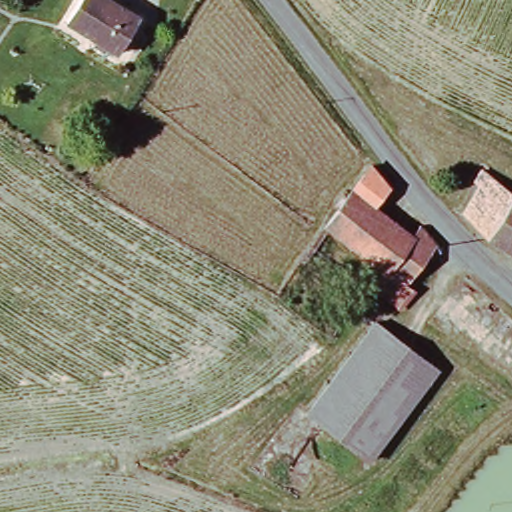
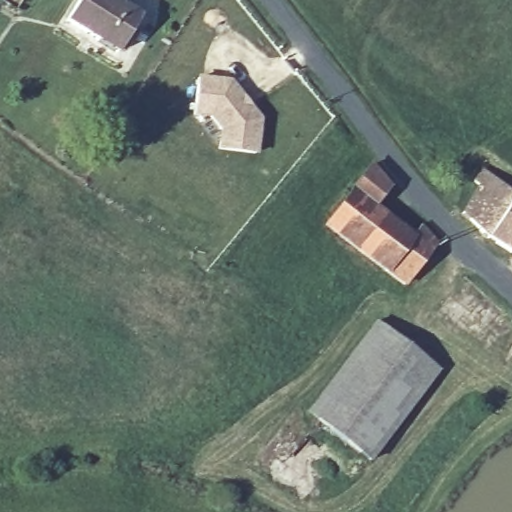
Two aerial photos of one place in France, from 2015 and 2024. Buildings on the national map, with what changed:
unchanged [(66,21),(79,0),(109,0),(139,18),(118,53),(66,21)]
new [(198,80),(228,84),(258,120),(254,154),(216,150),(195,117),(198,80)]
unchanged [(410,235),(420,223),(437,242),(405,284),(326,223),(373,165),(390,185),(375,206),(410,235)]
unchanged [(462,216),(482,189),(476,185),(482,177),(512,197),(512,254),(462,216)]
unchanged [(392,301),(405,284),(415,290),(401,309),(392,301)]
unchanged [(371,459),(309,413),(376,322),(438,368),(371,459)]

